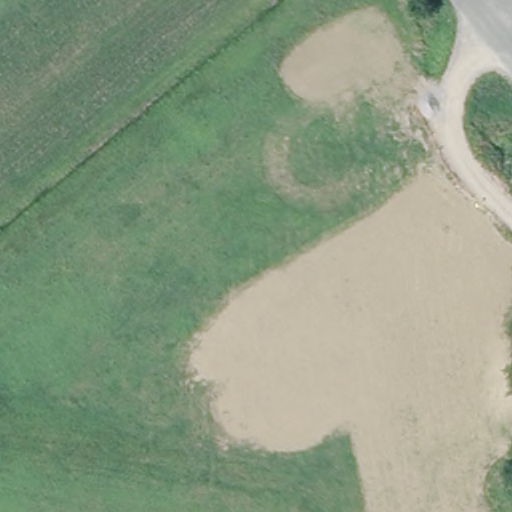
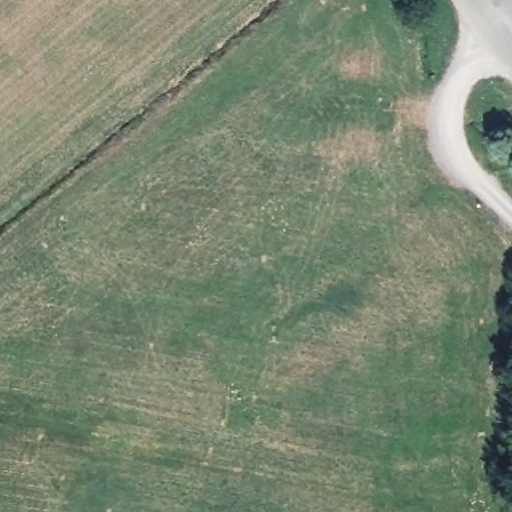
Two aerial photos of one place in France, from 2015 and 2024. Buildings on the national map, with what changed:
[]

